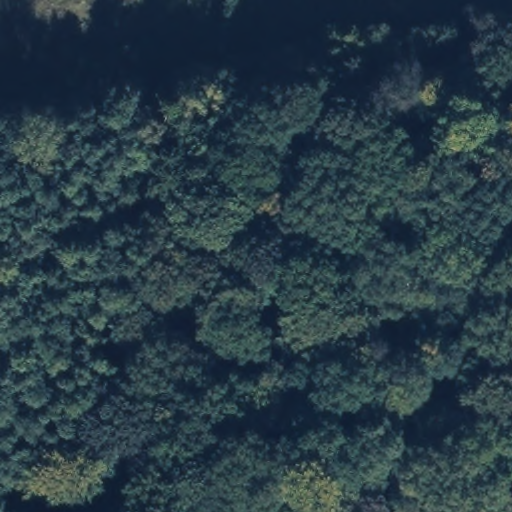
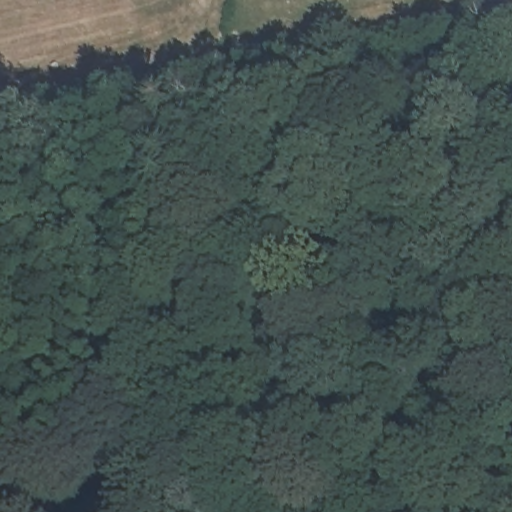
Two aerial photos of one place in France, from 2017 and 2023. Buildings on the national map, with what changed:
[]

